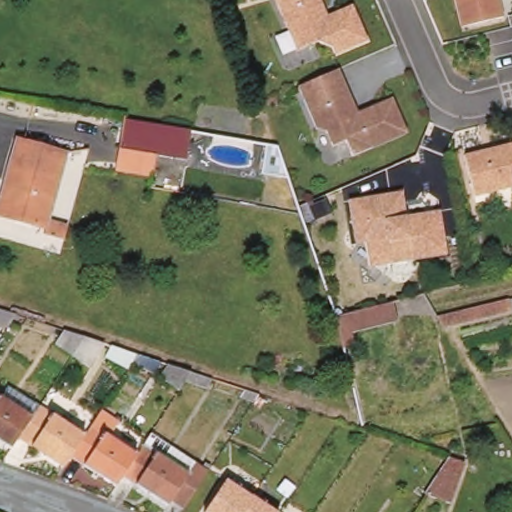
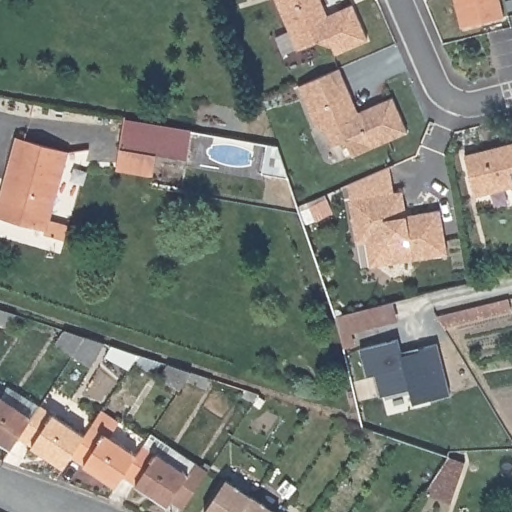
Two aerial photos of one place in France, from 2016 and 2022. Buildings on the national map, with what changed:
unchanged [(328,11),(353,1),(367,37),(334,50),(331,43),(317,36),(296,44),(280,0),(324,0),(328,11)]
unchanged [(506,11),(464,21),(459,0),(504,0),(506,11)]
unchanged [(342,66),(361,110),(395,95),(410,130),(355,152),(348,137),(335,142),(329,128),(320,125),(302,84),(342,66)]
unchanged [(156,155),(152,176),(115,169),(120,147),(126,117),(192,128),(187,157),(156,155)]
unchanged [(47,224),(0,211),(0,197),(17,134),(67,148),(47,224)]
unchanged [(512,185),(477,194),(467,153),(512,142),(512,185)]
unchanged [(371,237),(361,239),(359,229),(355,196),(400,189),(408,188),(411,213),(445,208),(451,251),(379,262),(374,262),(371,237)]
unchanged [(335,312),(392,298),(396,320),(376,325),(379,341),(345,348),(335,312)]
unchanged [(447,331),(443,320),(445,320),(482,311),(512,304),(512,316),(449,330),(447,331)]
new [(400,340),(405,358),(422,355),(422,352),(440,347),(451,399),(414,405),(411,390),(382,397),(377,375),(369,377),(363,348),(400,340)]
unchanged [(0,434),(0,390),(9,395),(15,385),(45,405),(38,415),(36,418),(23,437),(18,445),(0,434)]
unchanged [(86,436),(72,458),(66,466),(23,437),(36,418),(38,415),(45,405),(88,433),(86,436)]
unchanged [(122,480),(118,486),(72,458),(86,436),(88,433),(94,425),(138,455),(122,480)]
unchanged [(196,465),(168,506),(122,480),(138,455),(151,435),(196,465)]
unchanged [(451,491),(432,485),(448,458),(460,462),(451,491)]
unchanged [(210,512),(229,482),(252,497),(243,512),(210,512)]
unchanged [(254,494),(279,511),(279,512),(243,512),(252,497),(254,494)]

